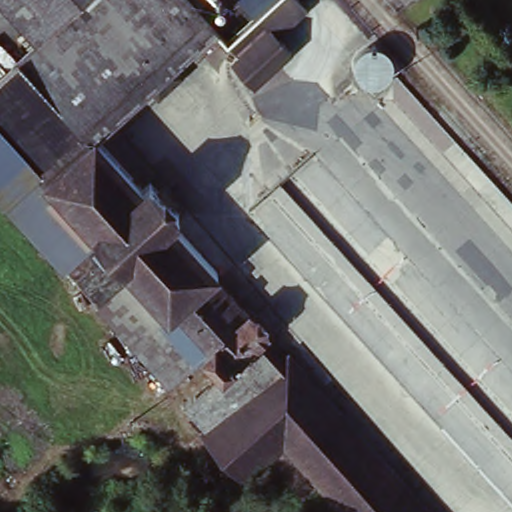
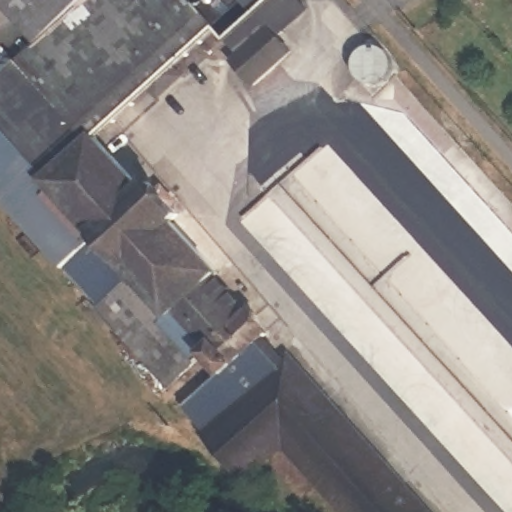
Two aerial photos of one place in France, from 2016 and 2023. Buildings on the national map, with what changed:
unchanged [(0,25),(0,0),(294,0),(296,3),(266,30),(281,46),(245,81),(223,59),(230,51),(216,35),(168,79),(175,88),(153,108),(145,100),(93,149),(141,202),(150,193),(180,225),(174,232),(221,280),(219,284),(273,341),(267,347),(289,369),(295,364),(439,512),(333,512),(288,464),(255,498),(207,452),(211,448),(188,424),(222,389),(204,371),(176,398),(89,307),(91,303),(57,268),(55,269),(54,270),(0,215),(0,80),(27,54),(0,25)]

